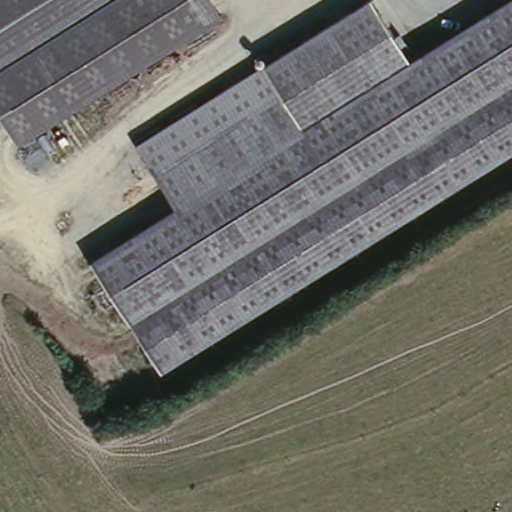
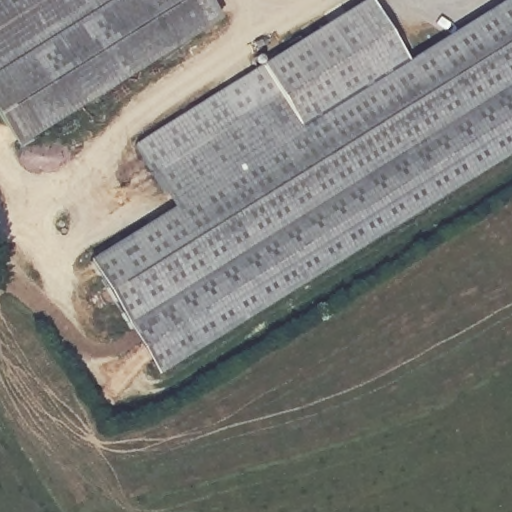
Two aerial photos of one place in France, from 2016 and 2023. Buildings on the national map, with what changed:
unchanged [(11,139),(0,121),(0,0),(208,0),(216,14),(11,139)]
unchanged [(512,1),(512,153),(157,370),(89,259),(174,206),(135,143),(369,0),(373,0),(411,62),(512,1)]

